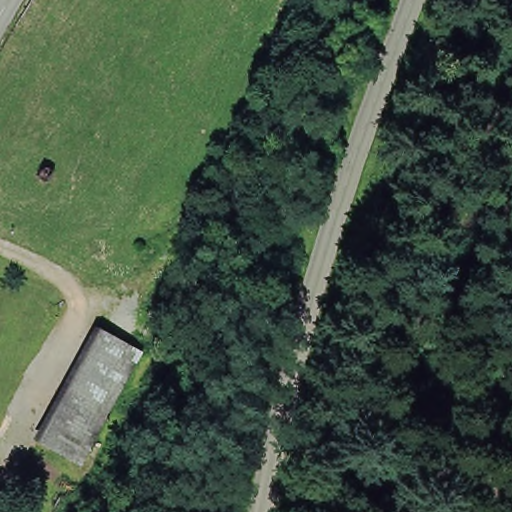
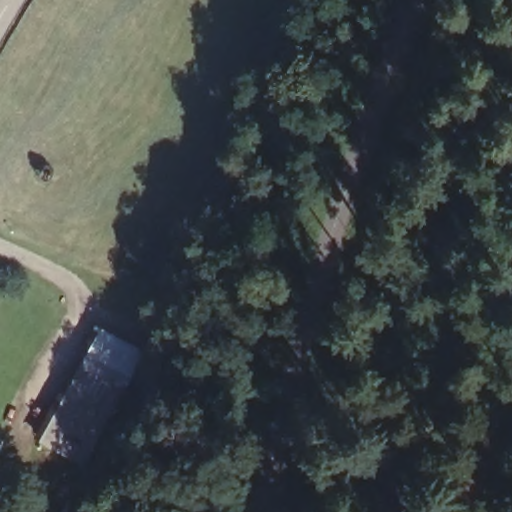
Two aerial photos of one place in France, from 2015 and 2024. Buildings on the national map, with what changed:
unchanged [(105,422),(81,466),(38,442),(98,332),(141,356),(107,419),(110,421),(108,424),(105,422)]

